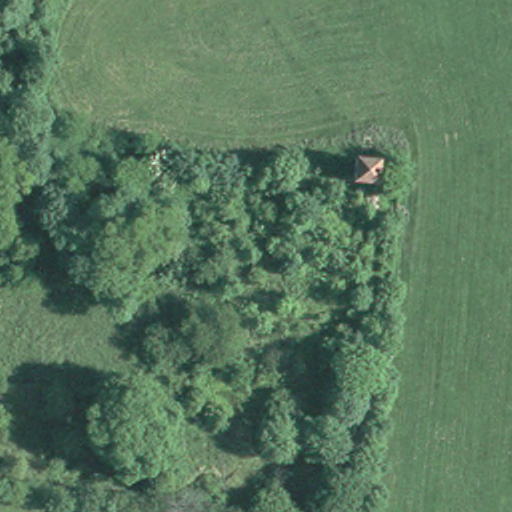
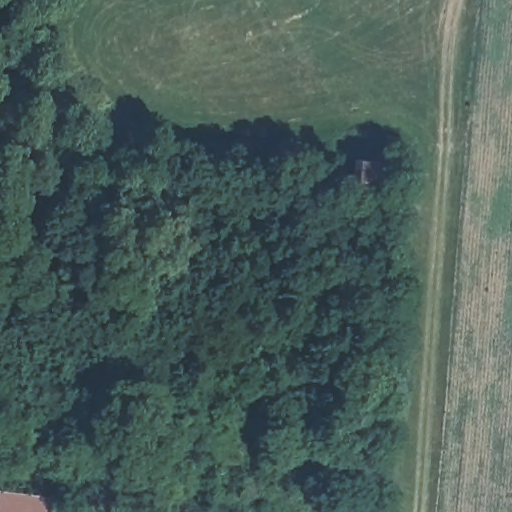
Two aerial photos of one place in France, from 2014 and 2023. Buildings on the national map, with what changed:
unchanged [(357,159),(380,161),(376,182),(355,180),(357,159)]
unchanged [(326,440),(328,423),(329,407),(353,409),(351,426),(350,442),(326,440)]
new [(0,512),(0,489),(47,495),(45,512),(0,512)]

